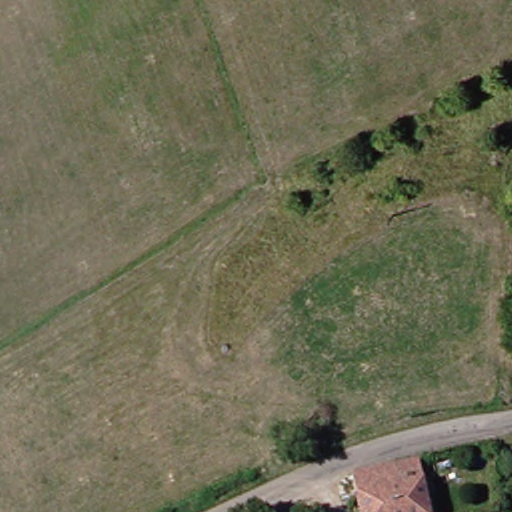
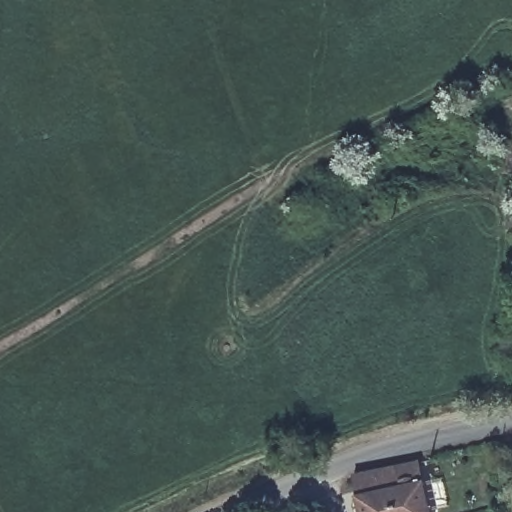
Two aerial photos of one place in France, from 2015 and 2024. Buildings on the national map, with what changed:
unchanged [(428,512),(362,512),(357,477),(422,464),(428,512)]

